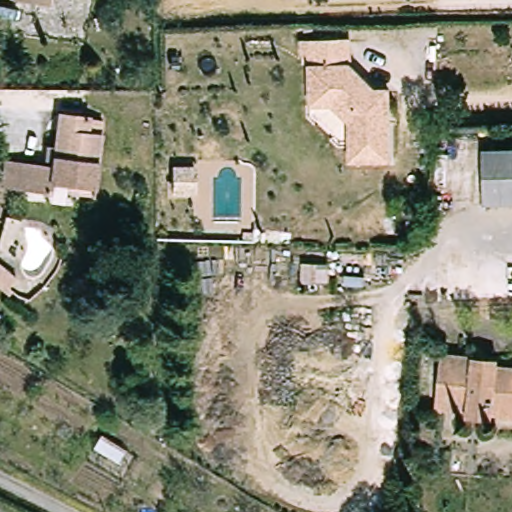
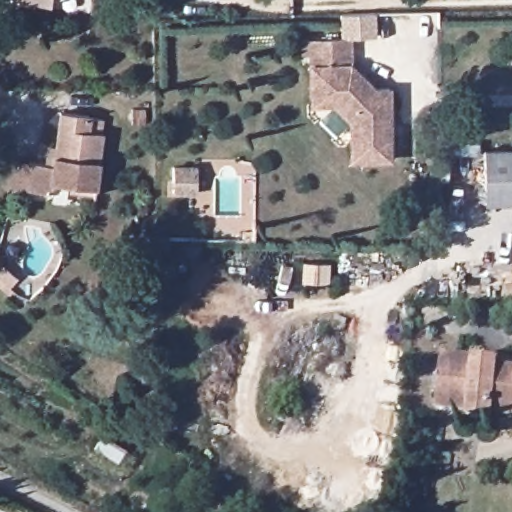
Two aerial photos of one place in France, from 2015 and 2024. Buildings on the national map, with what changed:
unchanged [(38,1),(31,0),(49,0),(48,4),(38,1)]
unchanged [(354,36),(354,63),(368,76),(378,87),(393,87),(393,158),(354,158),(354,119),(336,101),(314,101),(314,85),(314,37),(354,36)]
unchanged [(9,166),(32,167),(54,169),(58,112),(89,114),(90,130),(103,130),(100,186),(53,184),(53,194),(30,192),(8,191),(9,166)]
unchanged [(485,203),(484,148),(512,147),(512,202),(485,203)]
unchanged [(171,165),(193,165),(192,190),(171,190),(171,165)]
unchanged [(492,413),(490,417),(472,416),(466,410),(449,406),(438,403),(447,350),(459,352),(480,356),(479,362),(512,367),(512,416),(492,413)]

